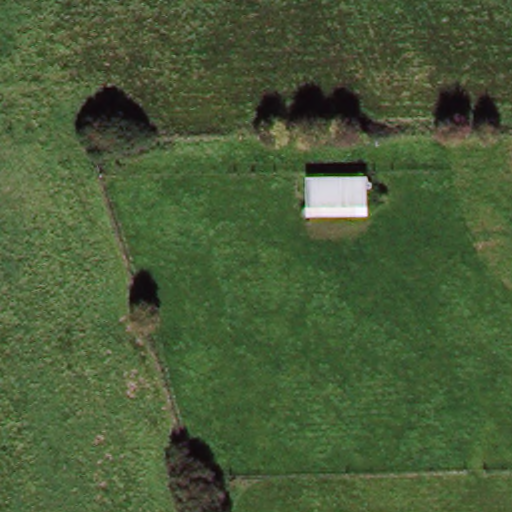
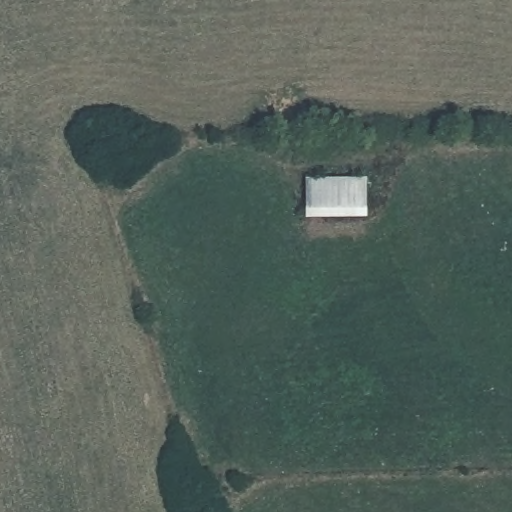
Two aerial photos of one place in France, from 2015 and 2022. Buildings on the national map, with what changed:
unchanged [(312,177),(374,176),(374,217),(311,219),(312,177)]

